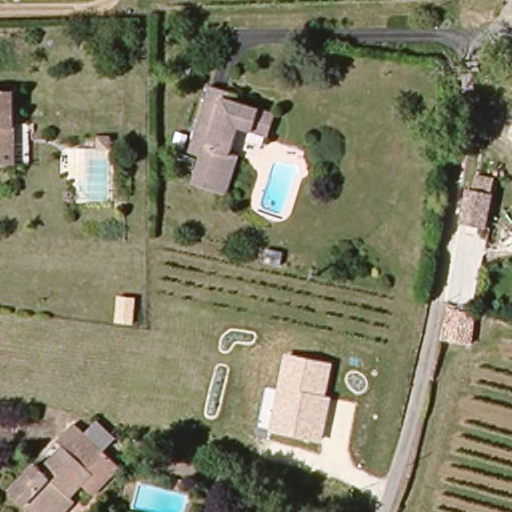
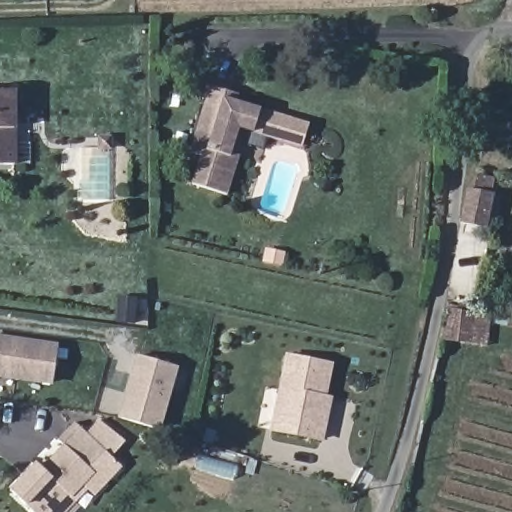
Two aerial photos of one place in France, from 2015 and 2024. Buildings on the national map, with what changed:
unchanged [(0,113),(0,87),(14,86),(15,112),(0,113)]
unchanged [(226,156),(236,160),(224,196),(189,184),(199,156),(188,152),(211,87),(238,96),(235,104),(257,112),(273,118),(265,140),(249,135),(236,130),(226,156)]
unchanged [(0,164),(0,113),(15,112),(16,147),(17,163),(0,164)]
unchanged [(463,222),(467,187),(474,185),(479,186),(493,189),(488,227),(474,224),(463,222)]
unchanged [(473,344),(441,341),(447,308),(477,314),(473,344)]
new [(53,385),(0,377),(0,335),(60,343),(53,385)]
new [(161,430),(117,417),(135,354),(179,367),(161,430)]
unchanged [(328,397),(333,398),(324,442),(271,432),(286,354),(335,363),(328,397)]
unchanged [(31,460),(35,465),(58,444),(53,438),(71,422),(81,433),(95,420),(112,440),(98,452),(115,471),(104,481),(85,474),(63,494),(70,502),(59,512),(31,512),(5,483),(31,460)]

